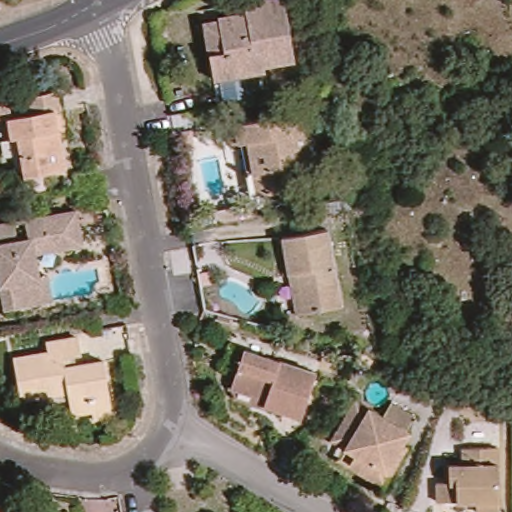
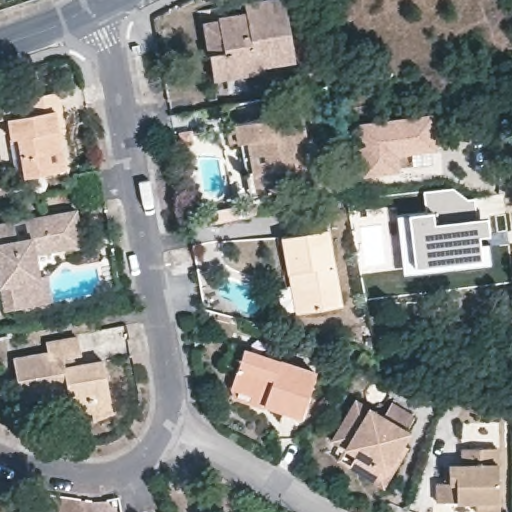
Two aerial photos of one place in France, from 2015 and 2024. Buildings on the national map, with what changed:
unchanged [(213,80),(204,25),(218,22),(218,18),(245,13),(244,4),(269,0),(284,0),(294,62),(263,67),(264,71),(213,80)]
unchanged [(0,127),(0,114),(13,112),(31,109),(30,103),(63,98),(65,117),(70,144),(63,145),(69,176),(29,183),(22,184),(15,145),(12,125),(0,127)]
unchanged [(232,121),(304,108),(308,128),(314,158),(309,159),(311,175),(295,178),(296,185),(263,190),(259,169),(251,170),(245,138),(236,140),(232,121)]
new [(433,115),(438,151),(397,157),(400,174),(363,178),(356,124),(433,115)]
new [(424,210),(422,190),(454,186),(467,197),(476,198),(478,216),(490,215),(492,235),(484,237),(484,243),(488,242),(490,264),(403,273),(396,215),(424,210)]
unchanged [(50,303),(42,304),(5,311),(0,284),(0,226),(10,224),(15,243),(29,241),(25,222),(73,212),(78,232),(80,247),(51,252),(33,255),(37,278),(46,277),(46,281),(50,303)]
unchanged [(293,273),(286,238),(331,230),(344,305),(306,312),(300,313),(293,273)]
unchanged [(94,416),(93,408),(73,412),(69,397),(38,403),(37,395),(20,398),(13,355),(46,349),(46,339),(76,334),(79,351),(73,352),(75,361),(103,357),(108,393),(111,408),(94,416)]
unchanged [(253,366),(238,361),(246,342),(259,347),(291,357),(329,369),(313,415),(279,403),(276,407),(249,398),(246,386),(253,366)]
unchanged [(348,449),(334,441),(358,400),(386,417),(394,404),(414,417),(408,430),(410,431),(403,443),(409,447),(403,456),(386,486),(366,474),(341,460),(348,449)]
unchanged [(506,461),(507,512),(446,512),(446,495),(459,495),(459,477),(473,477),(473,462),(506,461)]

